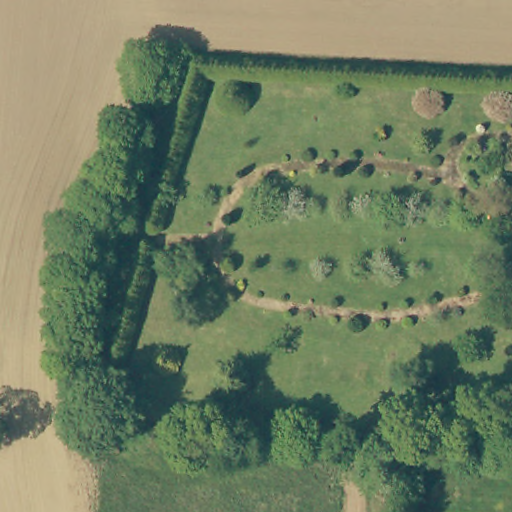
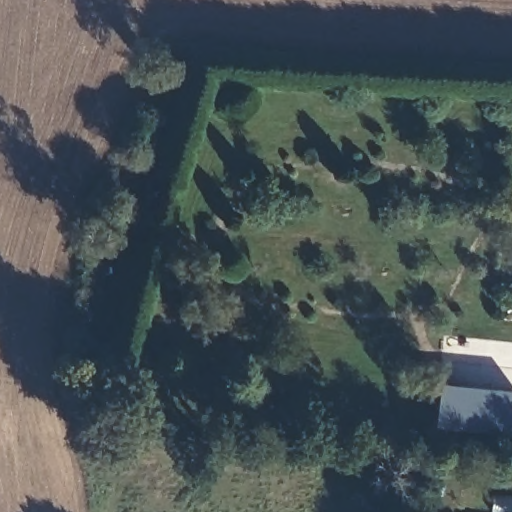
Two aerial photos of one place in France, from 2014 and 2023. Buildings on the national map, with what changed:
new [(436,383),(512,391),(512,419),(510,434),(431,425),(436,383)]

